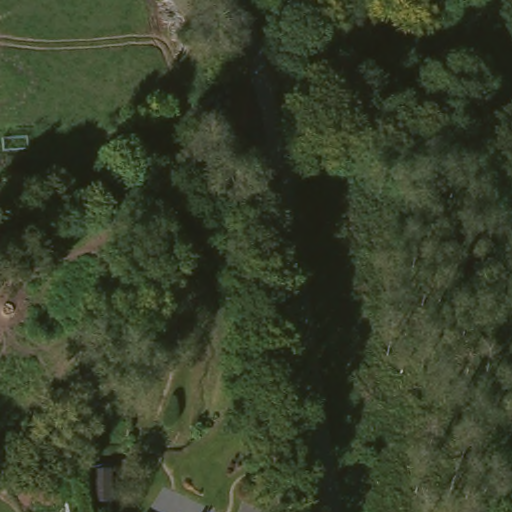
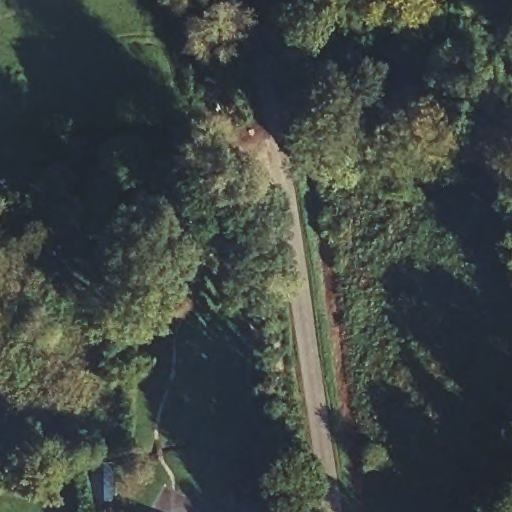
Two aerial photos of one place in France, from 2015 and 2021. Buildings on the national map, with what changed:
unchanged [(99,501),(99,467),(121,466),(122,501),(99,501)]

